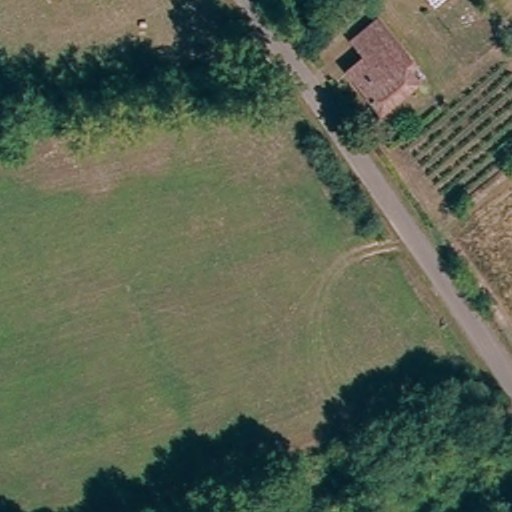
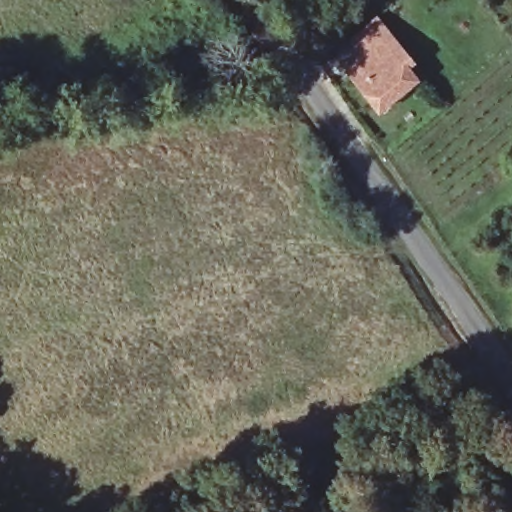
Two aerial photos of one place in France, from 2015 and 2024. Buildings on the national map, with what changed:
unchanged [(430,0),(437,0),(433,3),(430,0)]
unchanged [(366,56),(359,49),(347,35),(373,12),(405,47),(400,52),(387,38),(366,56)]
unchanged [(400,52),(414,67),(376,101),(343,63),(359,49),(366,56),(387,38),(400,52)]

